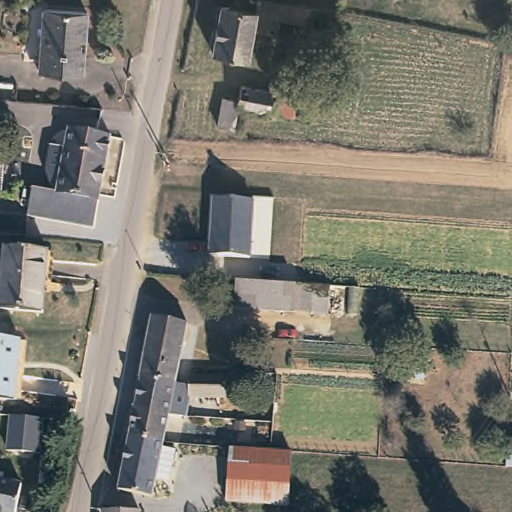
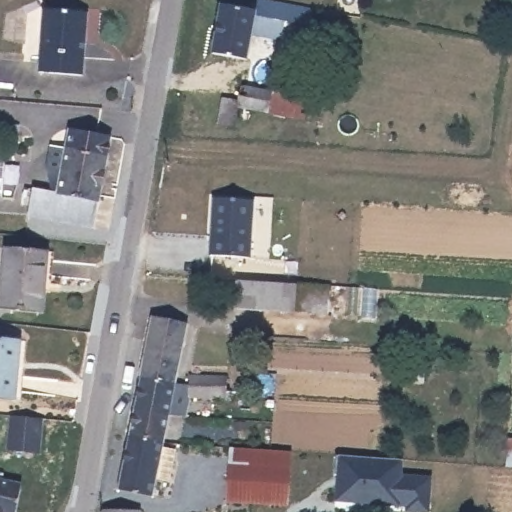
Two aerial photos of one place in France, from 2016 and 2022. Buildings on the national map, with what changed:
unchanged [(308,21),(279,16),(276,31),(254,26),(247,55),(211,49),(220,0),(231,0),(255,6),(257,0),(307,0),(310,1),(308,21)]
unchanged [(80,73),(41,70),(46,8),(84,10),(80,73)]
unchanged [(231,133),(211,131),(215,101),(233,102),(234,94),(264,98),(296,102),(293,123),(261,119),(233,115),(231,133)]
unchanged [(27,214),(32,186),(55,190),(67,131),(108,138),(94,226),(27,214)]
unchanged [(212,199),(254,200),(252,256),(209,255),(212,199)]
unchanged [(0,278),(4,244),(49,247),(41,309),(0,304),(0,278)]
unchanged [(313,314),(235,308),(238,280),(315,285),(330,286),(329,315),(313,314)]
unchanged [(148,317),(184,325),(165,417),(130,410),(148,317)]
unchanged [(0,396),(0,337),(18,340),(12,397),(0,396)]
unchanged [(229,402),(193,401),(194,381),(228,384),(229,402)]
unchanged [(165,417),(160,447),(123,441),(130,410),(165,417)]
unchanged [(10,416),(43,417),(40,454),(5,452),(10,416)]
unchanged [(159,452),(174,458),(165,486),(152,485),(147,502),(113,491),(123,441),(160,447),(159,452)]
unchanged [(285,503),(226,502),(230,447),(266,448),(287,451),(285,503)]
new [(402,512),(403,507),(334,503),(336,476),(332,476),(333,456),(402,460),(401,475),(428,477),(426,512),(402,512)]
unchanged [(3,512),(0,512),(0,477),(33,482),(28,512),(3,512)]
unchanged [(140,510),(140,512),(102,512),(102,510),(140,510)]

